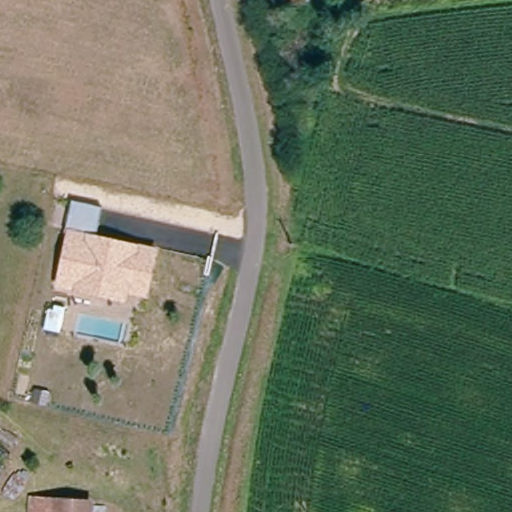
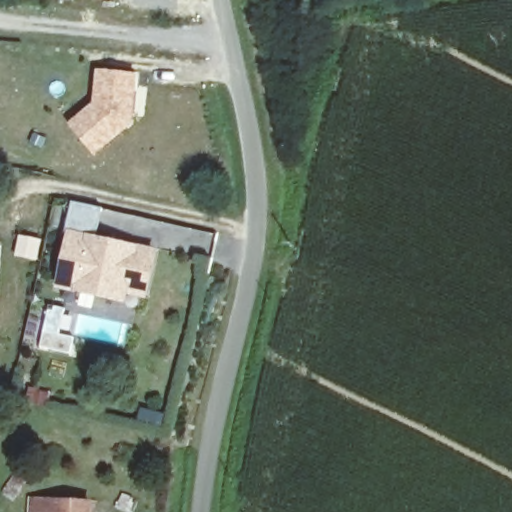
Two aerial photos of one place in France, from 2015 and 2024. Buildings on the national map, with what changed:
demolished [(252,8),(256,19),(242,23),(239,13),(252,8)]
new [(137,73),(132,125),(94,157),(66,123),(92,103),(95,68),(137,73)]
unchanged [(65,230),(71,201),(100,207),(95,235),(156,248),(147,299),(128,295),(126,304),(55,287),(65,230)]
new [(92,512),(27,512),(28,497),(93,500),(92,512)]
demolished [(88,512),(54,512),(55,501),(89,505),(88,512)]

